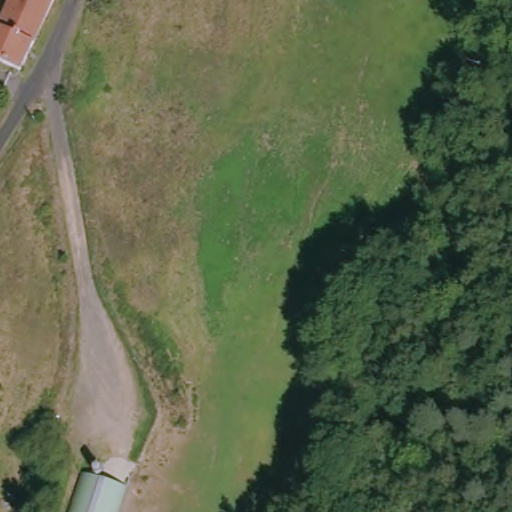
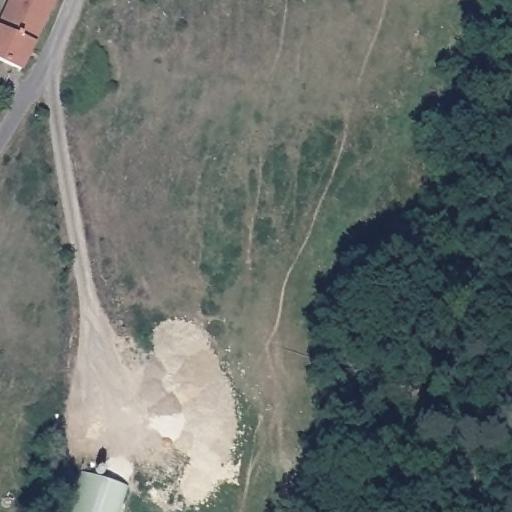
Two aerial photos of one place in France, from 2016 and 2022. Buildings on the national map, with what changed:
unchanged [(0,60),(0,23),(10,0),(51,0),(18,70),(0,60)]
unchanged [(80,472),(128,487),(120,512),(67,512),(80,472)]

